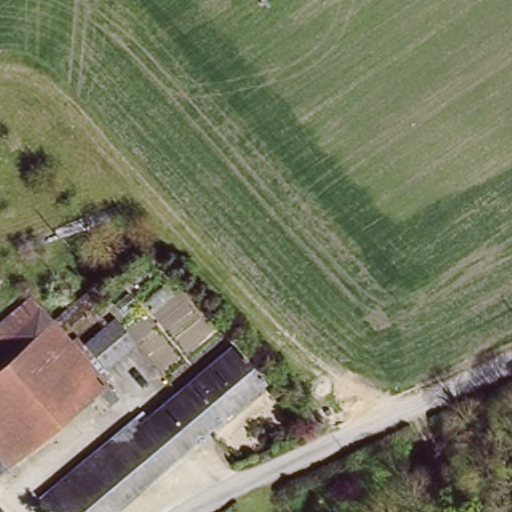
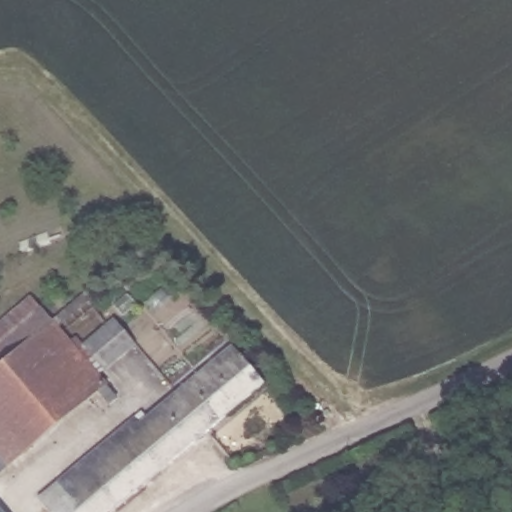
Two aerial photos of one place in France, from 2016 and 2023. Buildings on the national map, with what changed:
unchanged [(15,316),(32,301),(70,344),(78,338),(84,345),(113,319),(135,343),(97,375),(117,398),(111,404),(100,391),(88,400),(15,316)]
unchanged [(0,329),(15,316),(88,400),(8,470),(0,461),(0,329)]
unchanged [(43,512),(34,501),(138,413),(145,421),(231,348),(260,384),(109,512),(43,512)]
unchanged [(0,478),(0,461),(8,470),(0,478)]

